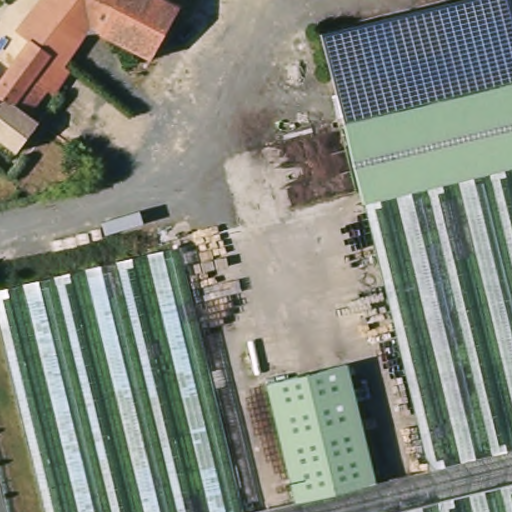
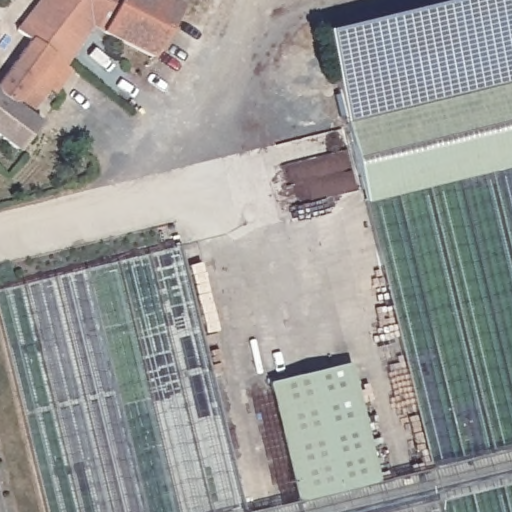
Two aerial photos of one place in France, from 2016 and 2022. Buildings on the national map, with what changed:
unchanged [(0,78),(29,39),(16,30),(39,0),(171,0),(181,5),(151,57),(102,32),(91,26),(67,65),(72,70),(56,95),(47,89),(29,112),(39,121),(18,152),(0,139),(0,78)]
unchanged [(343,117),(323,31),(453,0),(512,0),(512,1),(512,84),(343,117)]
unchanged [(512,84),(512,512),(434,512),(423,463),(358,185),(355,169),(343,117),(364,114),(512,84)]
unchanged [(369,475),(423,463),(434,512),(43,512),(0,317),(0,277),(37,269),(179,236),(202,340),(237,505),(292,492),(369,475)]
unchanged [(265,374),(343,356),(369,475),(292,492),(265,374)]

